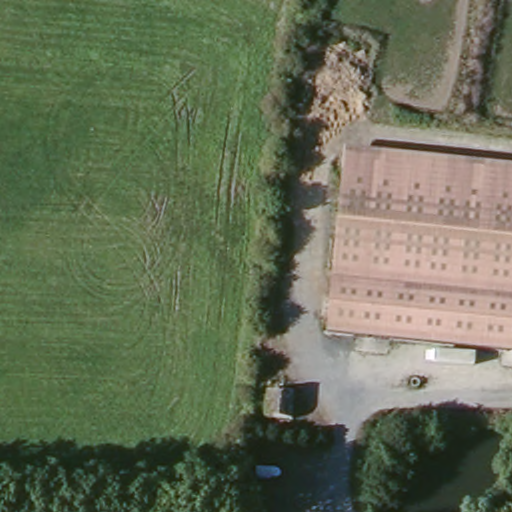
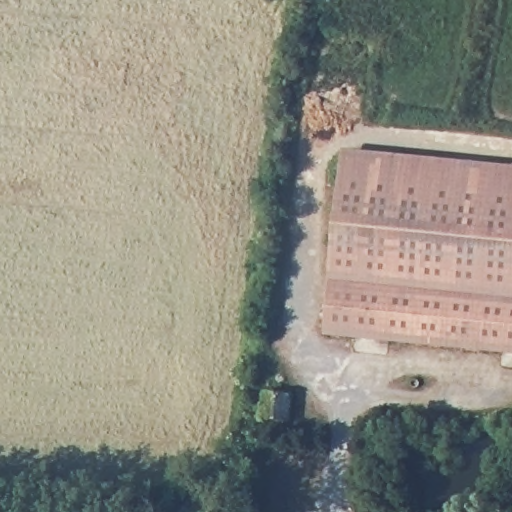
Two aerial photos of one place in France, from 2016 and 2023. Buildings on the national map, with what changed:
unchanged [(512,351),(325,334),(343,150),(512,166),(512,351)]
unchanged [(266,391),(295,392),(293,421),(266,419),(266,391)]

